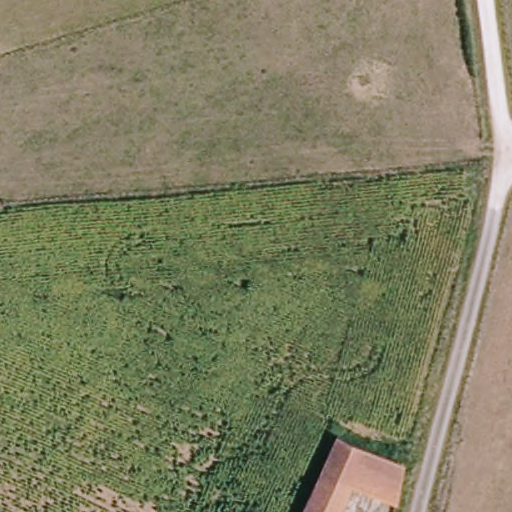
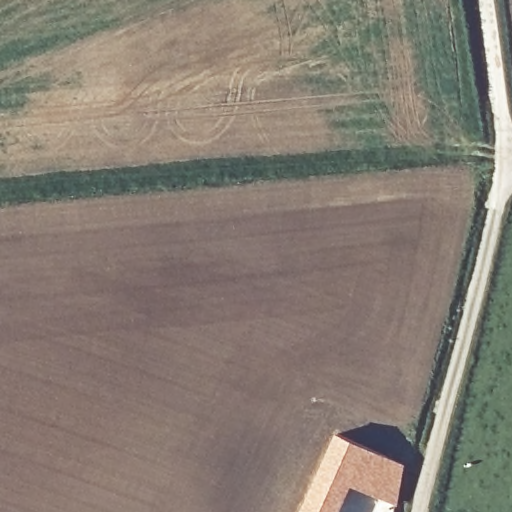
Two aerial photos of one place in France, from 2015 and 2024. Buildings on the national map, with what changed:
unchanged [(399,464),(390,504),(347,486),(336,512),(300,512),(333,435),(399,464)]

